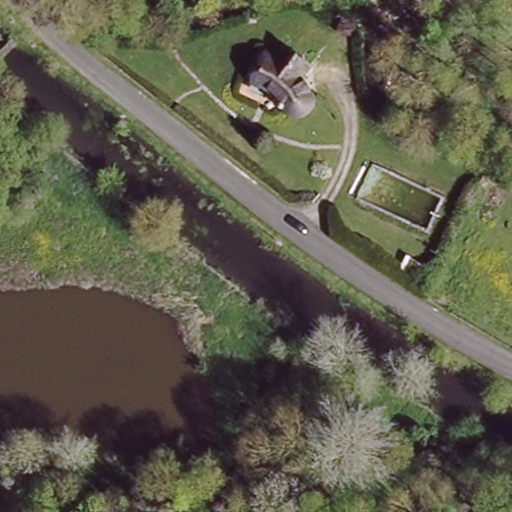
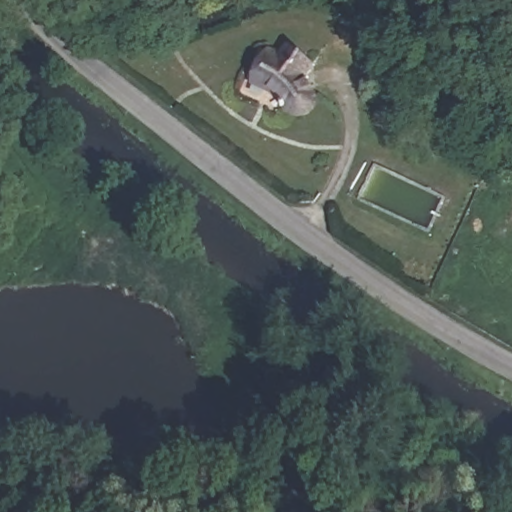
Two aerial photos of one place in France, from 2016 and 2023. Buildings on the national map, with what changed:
unchanged [(276,64),(286,43),(316,66),(307,79),(314,95),(316,99),(316,105),(313,113),(307,117),(301,120),(294,119),(289,117),(286,112),(284,108),(281,108),(281,105),(282,104),(281,98),(270,88),(268,93),(251,86),(254,78),(252,75),(251,71),(251,68),(252,64),(256,60),(259,58),(266,59),(276,64)]
unchanged [(400,282),(409,269),(434,285),(426,299),(400,282)]

